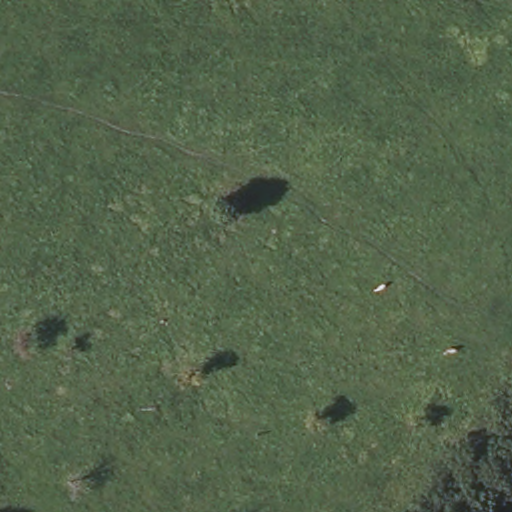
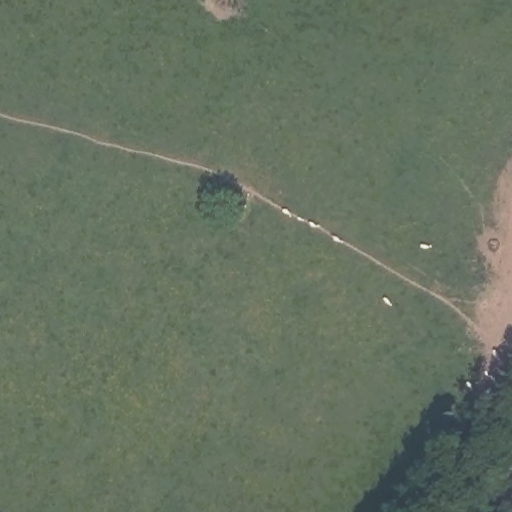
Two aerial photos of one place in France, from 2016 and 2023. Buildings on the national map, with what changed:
[]

